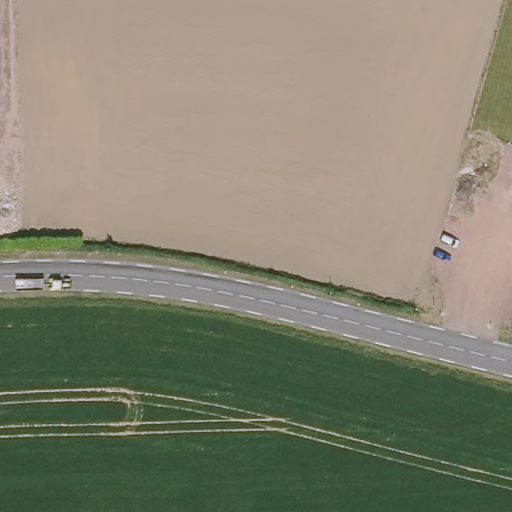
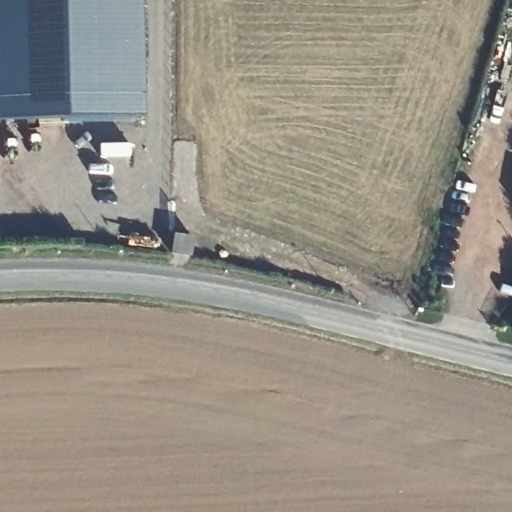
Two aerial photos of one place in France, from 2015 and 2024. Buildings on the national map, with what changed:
new [(0,122),(0,0),(139,0),(143,116),(0,122)]

